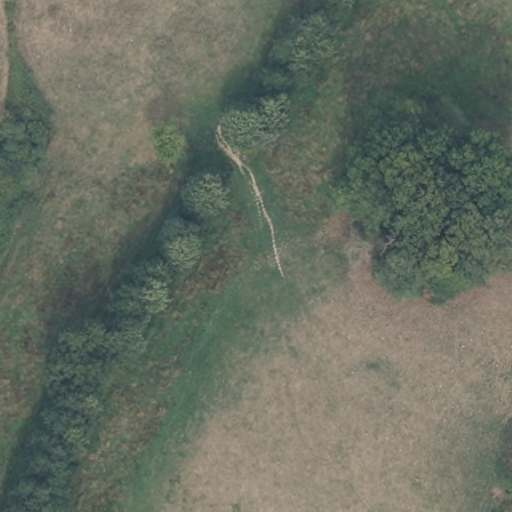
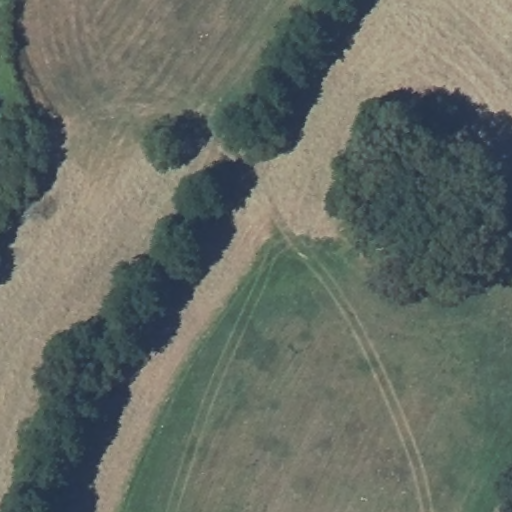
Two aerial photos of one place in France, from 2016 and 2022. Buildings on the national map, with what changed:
unchanged [(505,511),(507,512),(505,512),(505,511)]

